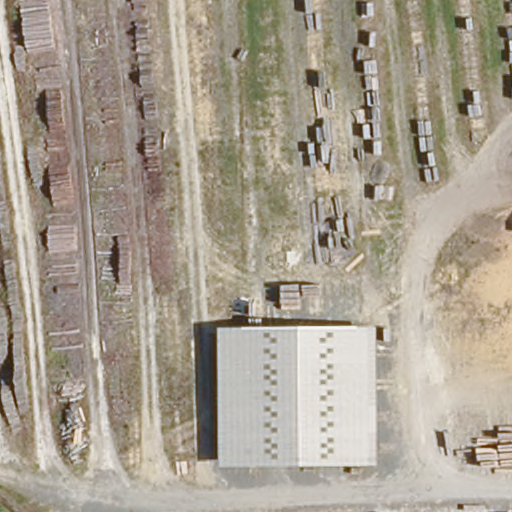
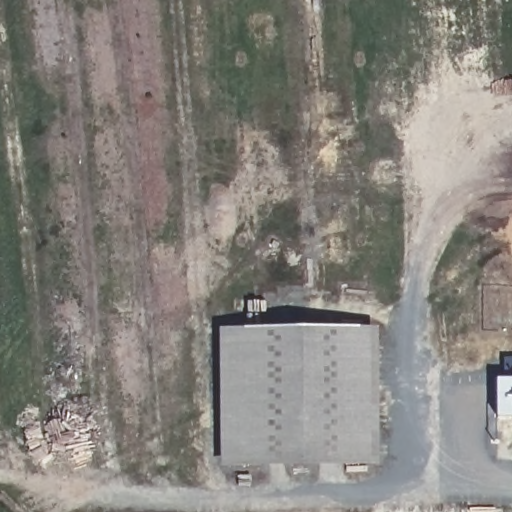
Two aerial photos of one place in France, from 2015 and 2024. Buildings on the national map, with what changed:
unchanged [(380,466),(221,467),(219,329),(378,327),(380,466)]
new [(512,357),(512,417),(497,417),(497,379),(505,379),(505,357),(512,357)]

